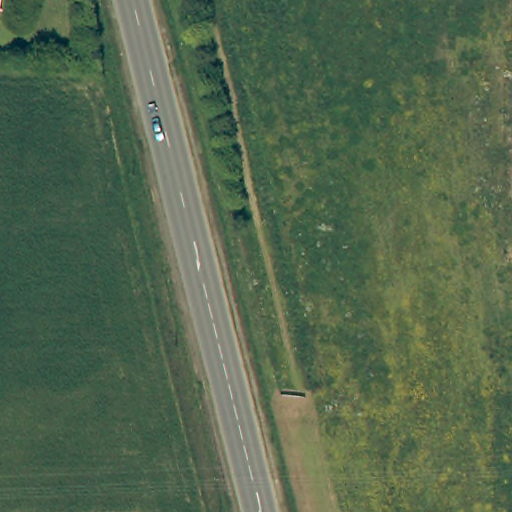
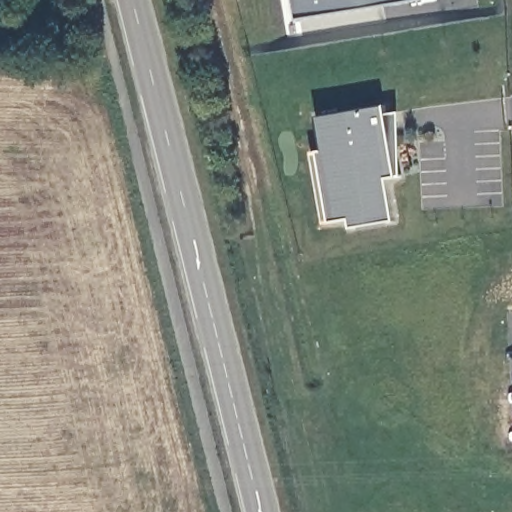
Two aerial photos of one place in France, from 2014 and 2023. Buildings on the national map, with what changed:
new [(299,21),(296,0),(411,0),(299,21)]
new [(385,106),(385,116),(398,114),(401,176),(397,177),(385,179),(393,221),(350,229),(349,219),(330,222),(323,224),(312,154),(324,151),(318,119),(385,106)]

